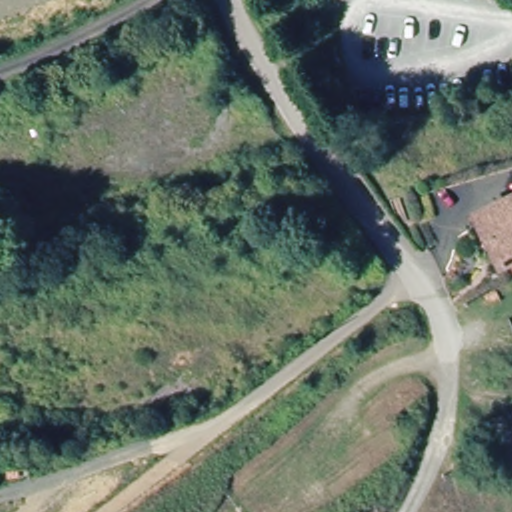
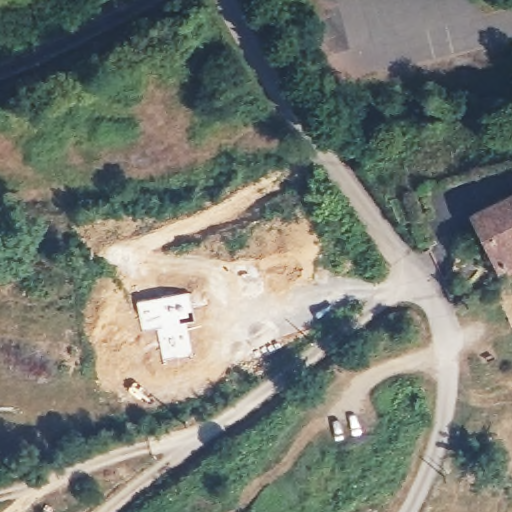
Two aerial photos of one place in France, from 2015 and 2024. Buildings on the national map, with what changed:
unchanged [(512,256),(490,266),(462,212),(512,188),(512,256)]
new [(194,322),(185,325),(191,356),(162,362),(155,327),(140,330),(135,300),(188,291),(194,322)]
demolished [(108,324),(106,307),(120,311),(120,325),(108,324)]

